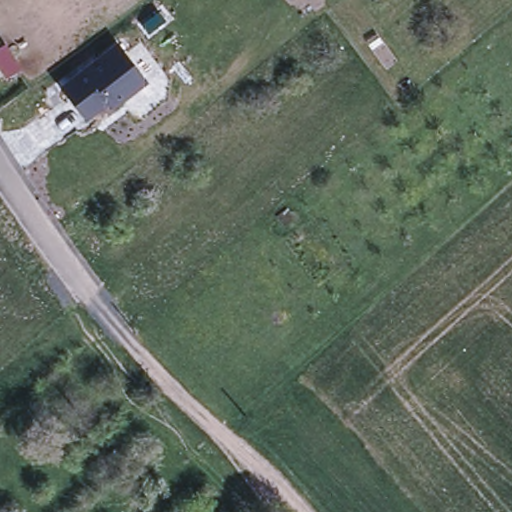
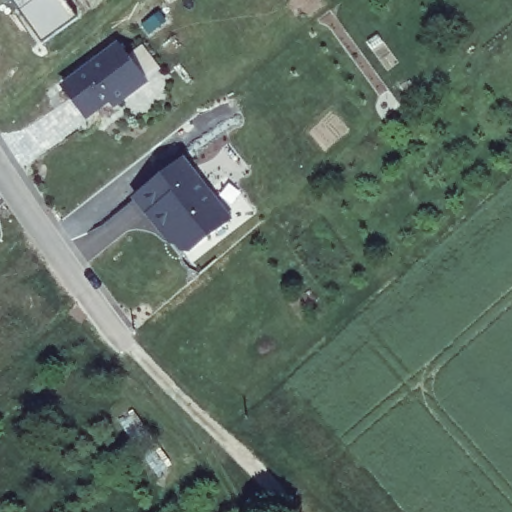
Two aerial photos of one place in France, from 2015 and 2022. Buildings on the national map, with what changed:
new [(77,17),(42,42),(12,0),(64,0),(77,17)]
unchanged [(108,97),(86,116),(63,85),(116,44),(141,76),(144,80),(114,104),(110,100),(108,97)]
new [(235,219),(188,252),(178,252),(174,246),(168,246),(129,198),(183,156),(235,219)]

